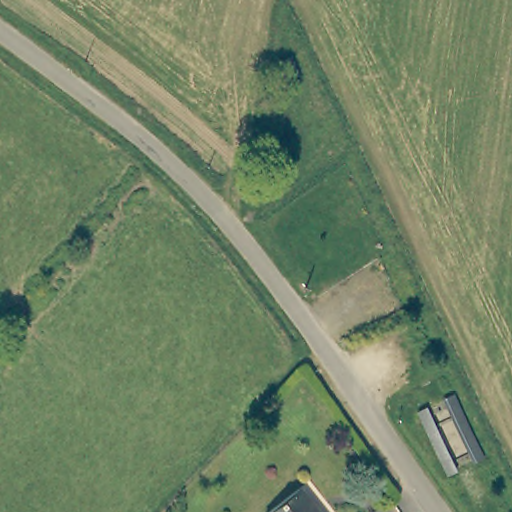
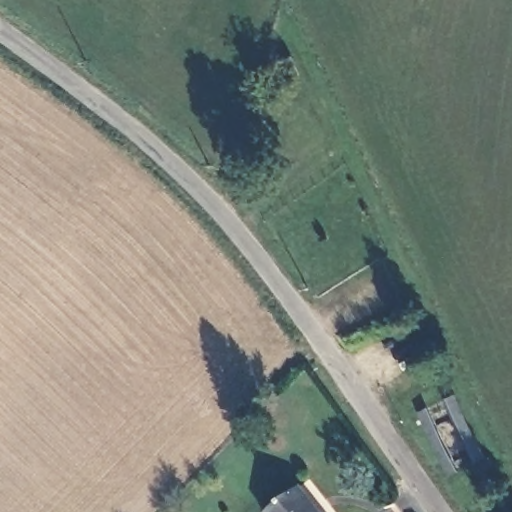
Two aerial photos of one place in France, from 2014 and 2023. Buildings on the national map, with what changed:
unchanged [(279,62),(291,57),(298,74),(286,79),(279,62)]
unchanged [(441,402),(454,394),(480,454),(466,462),(441,402)]
unchanged [(441,474),(416,415),(428,409),(454,468),(441,474)]
unchanged [(269,512),(301,487),(320,512),(269,512)]

